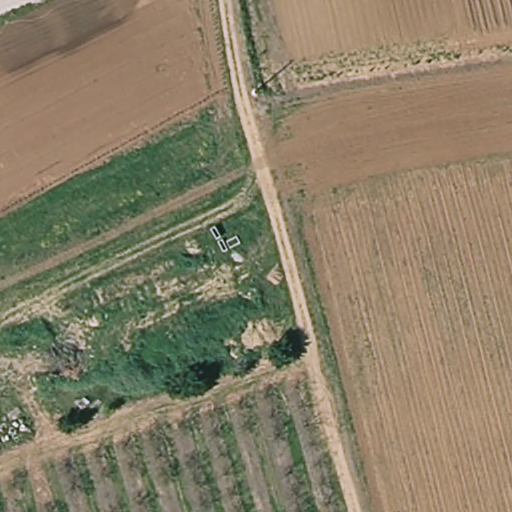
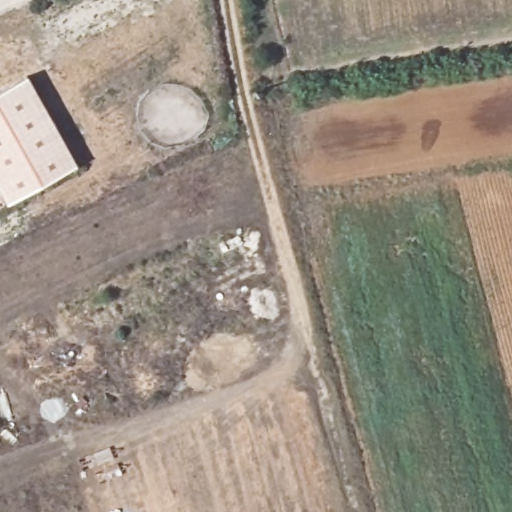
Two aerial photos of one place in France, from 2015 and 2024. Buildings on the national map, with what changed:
new [(7,204),(0,193),(0,92),(25,77),(75,166),(7,204)]

